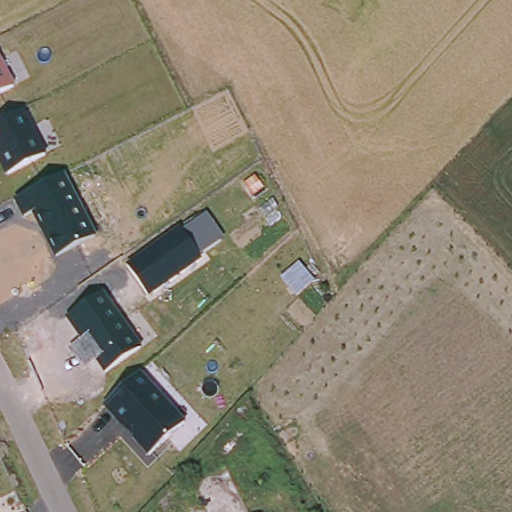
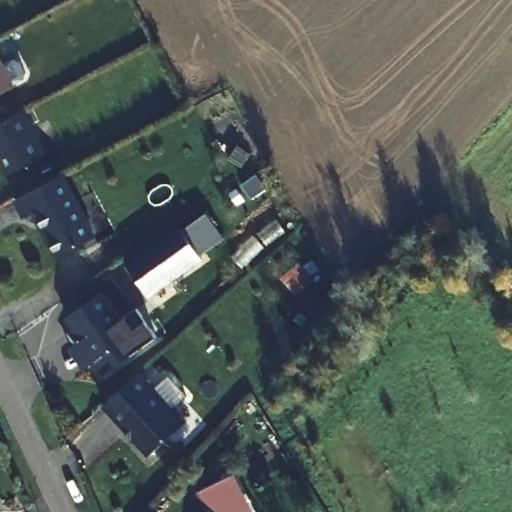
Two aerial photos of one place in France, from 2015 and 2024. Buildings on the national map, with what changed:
unchanged [(0,94),(0,58),(14,87),(0,94)]
unchanged [(47,155),(5,176),(0,165),(0,123),(24,111),(47,155)]
unchanged [(22,219),(15,201),(65,176),(96,237),(52,257),(31,214),(22,219)]
unchanged [(204,258),(150,296),(127,265),(181,227),(204,258)]
unchanged [(68,318),(105,291),(144,347),(107,372),(68,318)]
unchanged [(186,422),(148,457),(104,406),(141,372),(186,422)]
new [(198,493),(236,473),(255,512),(207,512),(198,493)]

